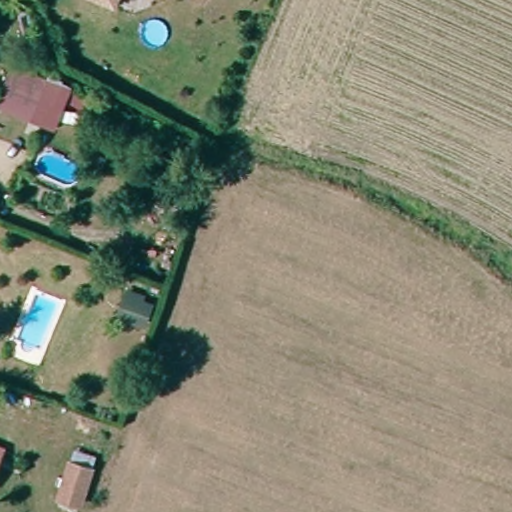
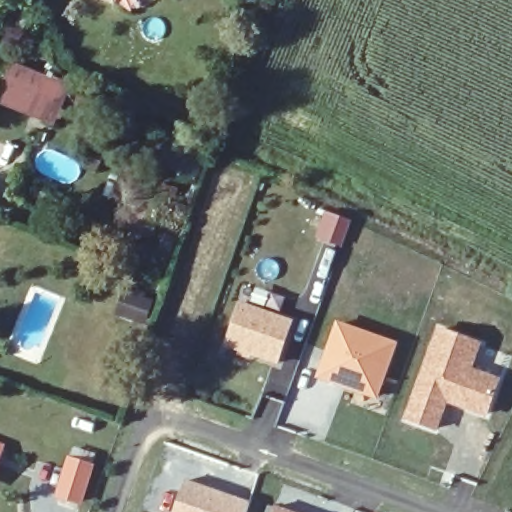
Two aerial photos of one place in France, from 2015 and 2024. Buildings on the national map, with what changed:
unchanged [(18,65),(50,77),(36,115),(4,103),(18,65)]
new [(343,246),(326,240),(320,238),(329,214),(335,216),(352,222),(343,246)]
new [(245,305),(296,323),(282,364),(230,346),(245,305)]
new [(336,319),(398,341),(377,399),(313,378),(336,319)]
new [(435,324),(482,341),(474,367),(502,377),(486,418),(448,404),(436,432),(399,419),(435,324)]
unchanged [(6,449),(3,456),(0,455),(0,447),(6,449)]
unchanged [(100,464),(86,499),(65,491),(79,456),(100,464)]
new [(187,481),(251,504),(248,512),(176,512),(187,481)]
new [(276,508),(286,512),(275,512),(276,508)]

